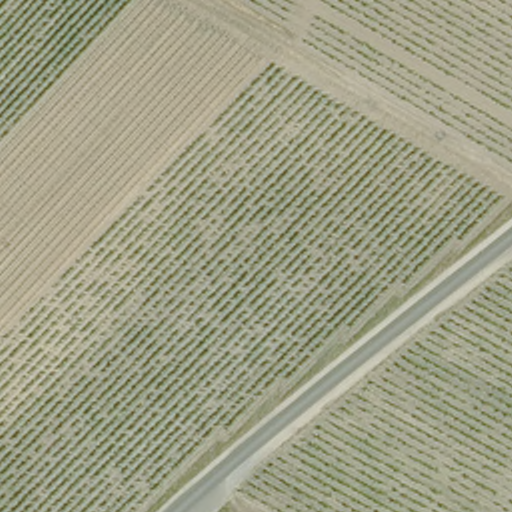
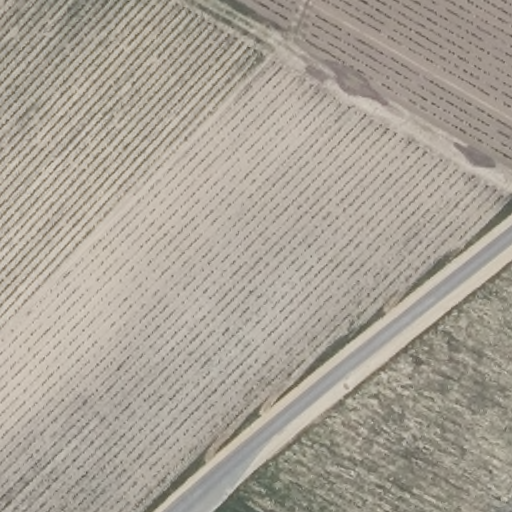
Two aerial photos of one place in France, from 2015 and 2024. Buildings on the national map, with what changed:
unchanged [(295,189),(286,198),(276,188),(286,180),(295,189)]

